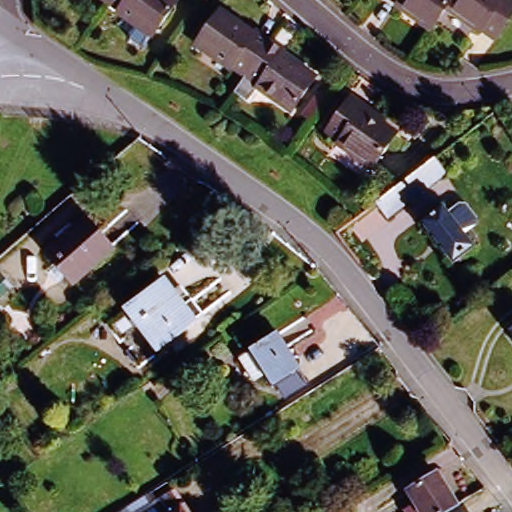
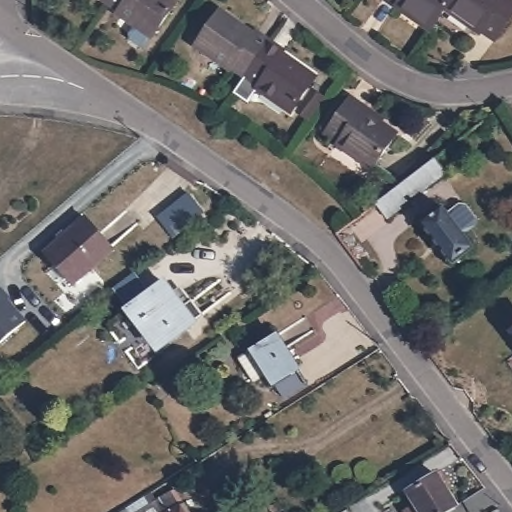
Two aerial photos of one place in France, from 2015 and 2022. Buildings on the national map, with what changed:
unchanged [(153,35),(117,10),(119,7),(109,0),(175,0),(176,1),(153,35)]
unchanged [(501,4),(512,12),(512,18),(493,45),(482,36),(480,39),(445,14),(436,25),(431,32),(396,6),(398,4),(393,0),(489,0),(498,7),(501,4)]
unchanged [(230,67),(227,71),(193,46),(217,13),(235,25),(233,29),(248,40),(250,37),(264,47),(243,77),(230,67)]
unchanged [(278,57),(276,60),(292,72),(295,70),(311,82),(287,115),(254,90),(256,87),(243,77),(264,47),(278,57)]
unchanged [(363,109),(362,113),(375,123),(378,120),(393,132),(369,166),(338,144),(338,142),(339,140),(327,131),(350,100),(363,109)]
unchanged [(445,176),(385,222),(374,209),(396,190),(435,162),(445,176)]
unchanged [(462,207),(468,209),(478,222),(477,229),(465,237),(475,251),(453,267),(422,226),(445,210),(450,216),(462,207)]
unchanged [(111,250),(70,284),(45,254),(85,220),(111,250)]
demolished [(2,273),(15,288),(0,302),(0,275),(2,273)]
unchanged [(176,313),(185,307),(196,321),(151,355),(121,315),(157,288),(176,313)]
new [(10,301),(8,303),(26,324),(0,347),(0,290),(10,301)]
unchanged [(512,331),(512,337),(509,333),(512,331)]
unchanged [(282,398),(273,385),(269,388),(246,351),(275,335),(297,371),(296,371),(305,385),(282,398)]
unchanged [(408,492),(435,475),(455,508),(449,512),(420,512),(408,492)]
unchanged [(146,507),(171,492),(175,496),(186,512),(138,512),(146,507)]
unchanged [(122,512),(117,512),(120,510),(122,512)]

